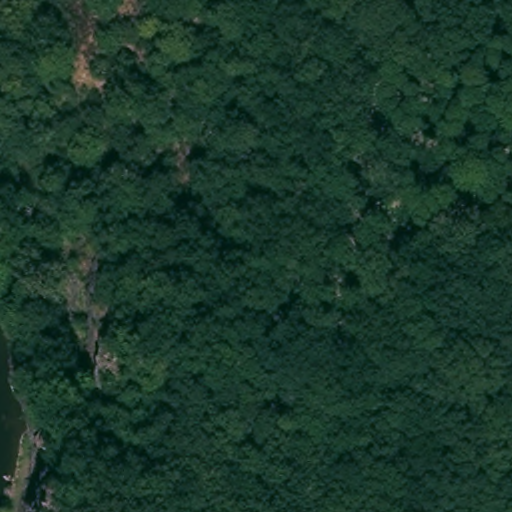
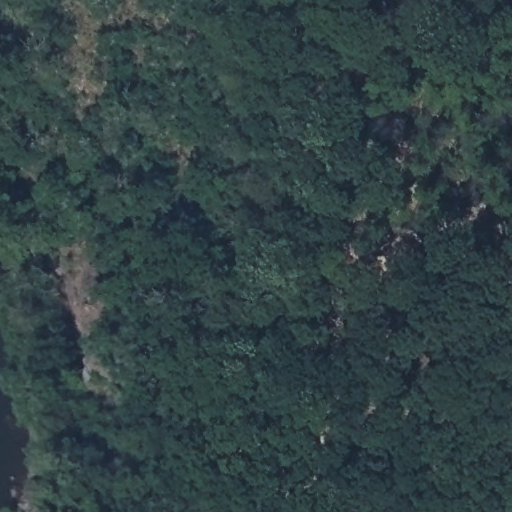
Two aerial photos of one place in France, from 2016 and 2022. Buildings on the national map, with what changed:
[]

